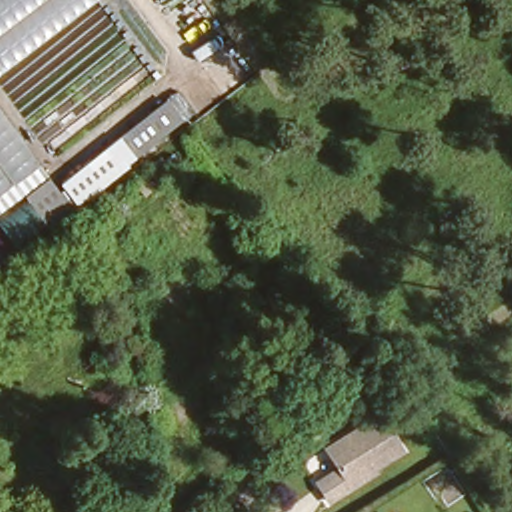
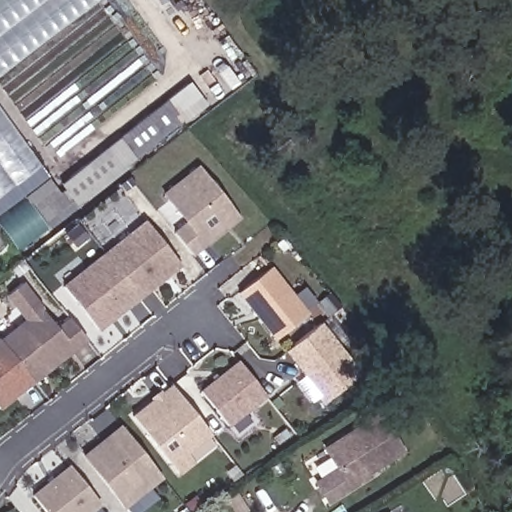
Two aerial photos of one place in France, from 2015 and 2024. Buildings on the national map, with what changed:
unchanged [(0,27),(0,0),(37,0),(0,27)]
unchanged [(85,7),(0,69),(0,34),(46,0),(95,0),(85,7)]
unchanged [(57,184),(162,100),(174,90),(191,111),(180,120),(71,209),(72,211),(56,224),(42,205),(56,194),(62,190),(57,184)]
unchanged [(0,208),(0,115),(45,176),(0,208)]
new [(192,255),(172,230),(183,222),(162,192),(199,163),(240,218),(192,255)]
unchanged [(56,224),(19,252),(5,233),(0,227),(0,211),(45,179),(56,194),(42,205),(56,224)]
new [(98,330),(61,284),(144,219),(181,266),(98,330)]
new [(273,340),(237,293),(270,266),(308,315),(273,340)]
new [(0,408),(0,336),(22,319),(4,295),(22,281),(57,327),(69,316),(86,340),(33,382),(0,408)]
new [(322,403),(283,351),(321,322),(361,375),(322,403)]
new [(200,390),(236,361),(265,396),(226,427),(200,390)]
new [(176,473),(132,415),(150,400),(147,397),(158,388),(161,391),(169,382),(209,433),(186,452),(192,461),(176,473)]
unchanged [(326,445),(377,414),(401,453),(348,485),(350,488),(328,502),(316,480),(338,466),(326,445)]
new [(80,455),(119,423),(161,477),(123,507),(80,455)]
new [(45,512),(30,493),(67,463),(100,505),(90,512),(45,512)]

